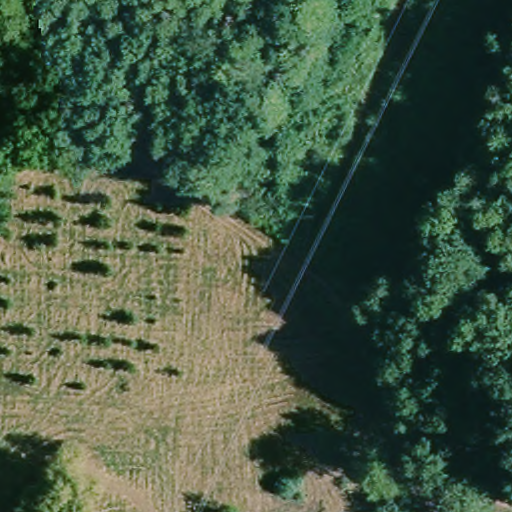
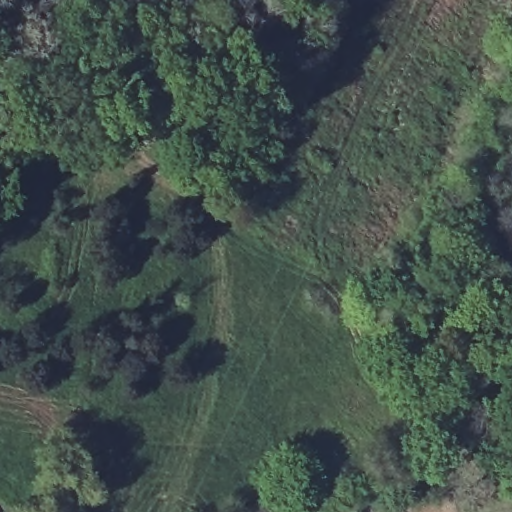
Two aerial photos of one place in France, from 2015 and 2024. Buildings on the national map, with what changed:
[]

